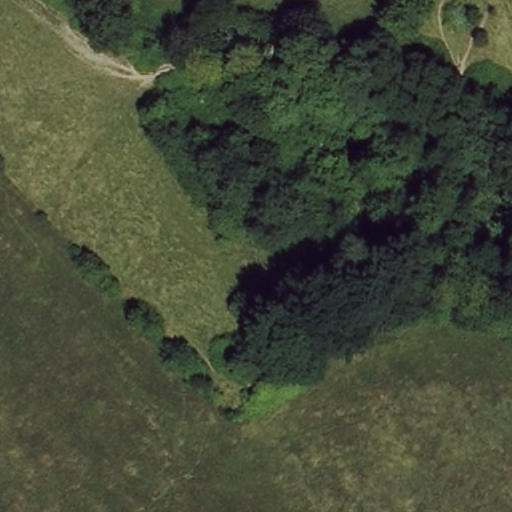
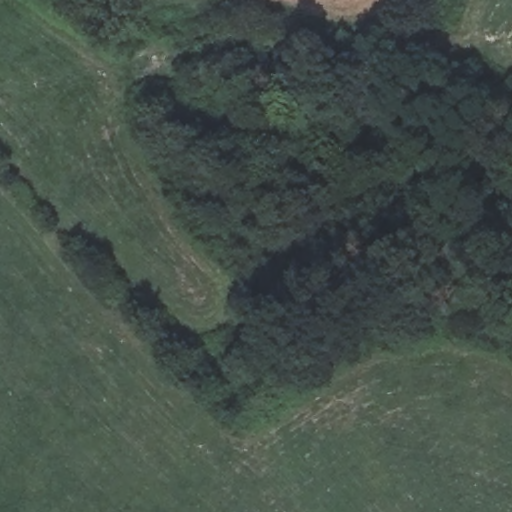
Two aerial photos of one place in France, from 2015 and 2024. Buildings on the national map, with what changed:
[]

